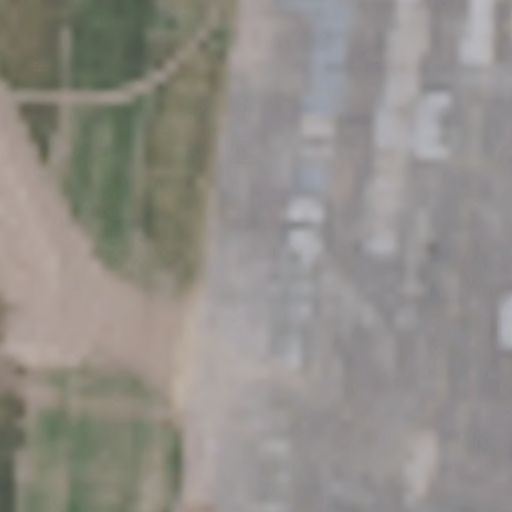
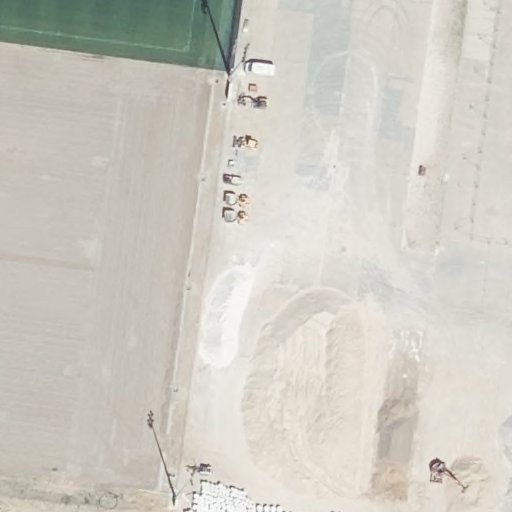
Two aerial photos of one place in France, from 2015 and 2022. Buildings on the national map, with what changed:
[]

